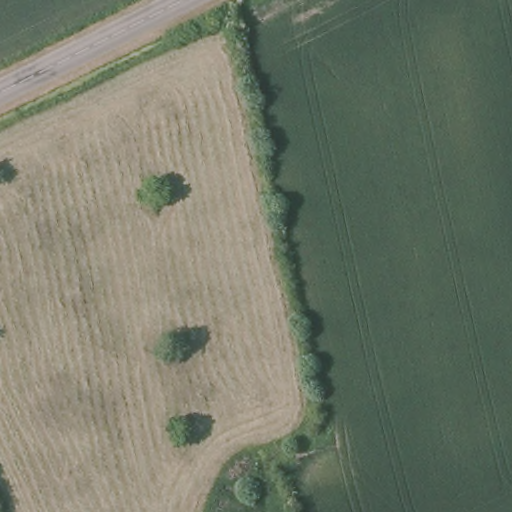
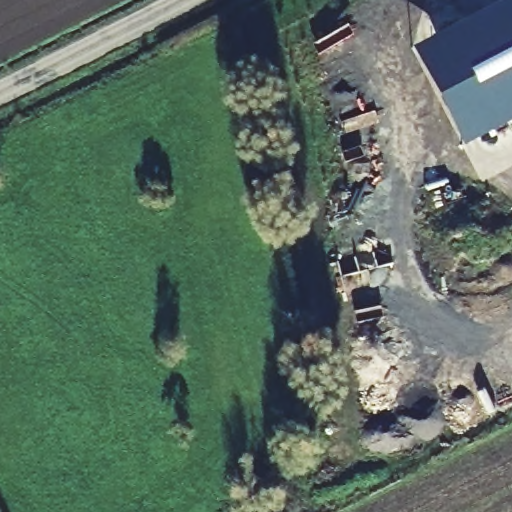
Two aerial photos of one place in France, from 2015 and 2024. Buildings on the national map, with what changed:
new [(412,48),(504,0),(512,0),(512,121),(463,146),(412,48)]

